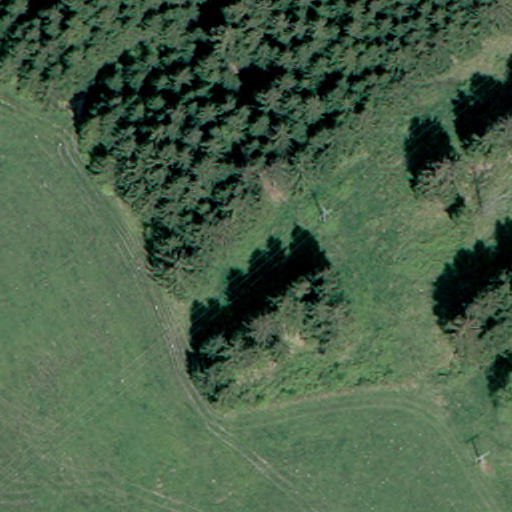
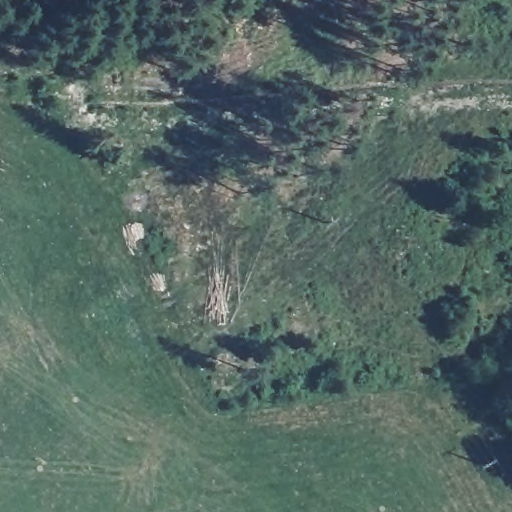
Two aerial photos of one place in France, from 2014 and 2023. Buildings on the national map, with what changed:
[]

